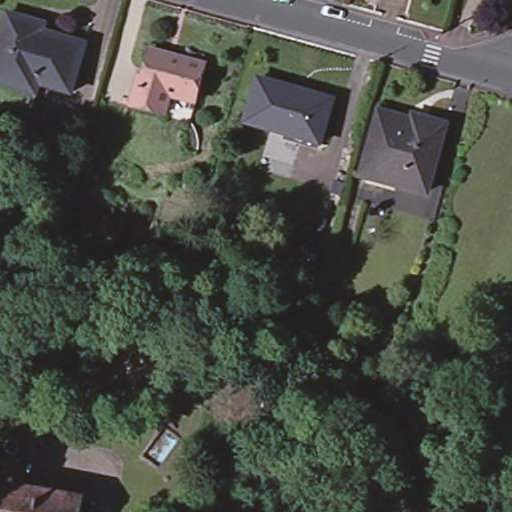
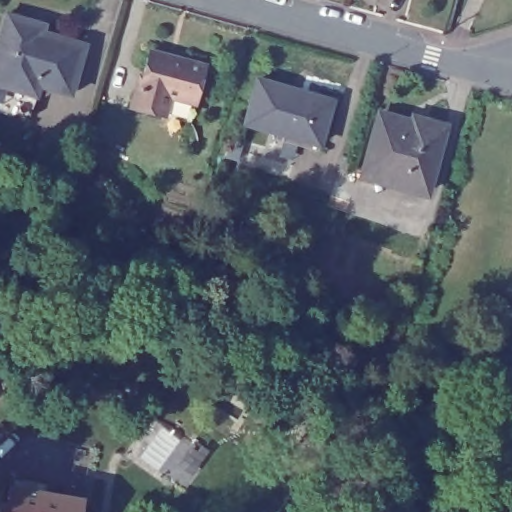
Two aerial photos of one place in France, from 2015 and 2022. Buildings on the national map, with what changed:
unchanged [(29,19),(44,23),(42,30),(85,43),(69,93),(39,84),(36,94),(7,85),(0,83),(0,38),(7,12),(29,19)]
unchanged [(163,111),(131,102),(137,80),(139,81),(149,46),(206,61),(196,98),(190,118),(163,111)]
unchanged [(332,99),(320,143),(246,122),(258,79),(332,99)]
unchanged [(424,123),(425,118),(444,123),(426,190),(400,183),(402,175),(366,165),(380,111),(424,123)]
unchanged [(82,495),(79,512),(0,512),(0,505),(1,499),(9,500),(11,483),(82,495)]

